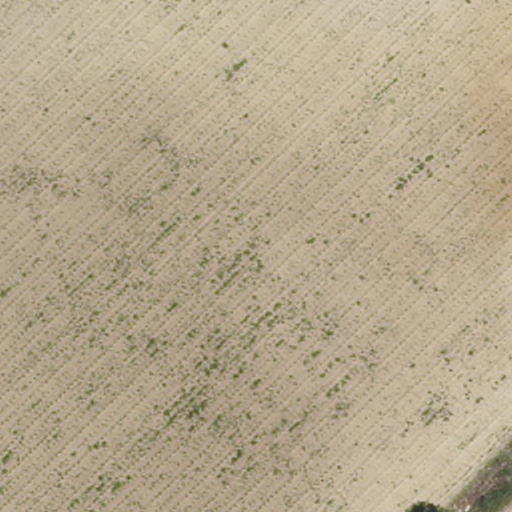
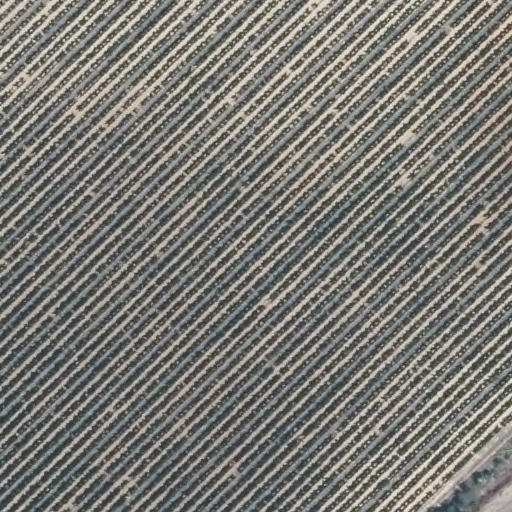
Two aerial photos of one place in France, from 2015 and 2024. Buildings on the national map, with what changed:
[]

